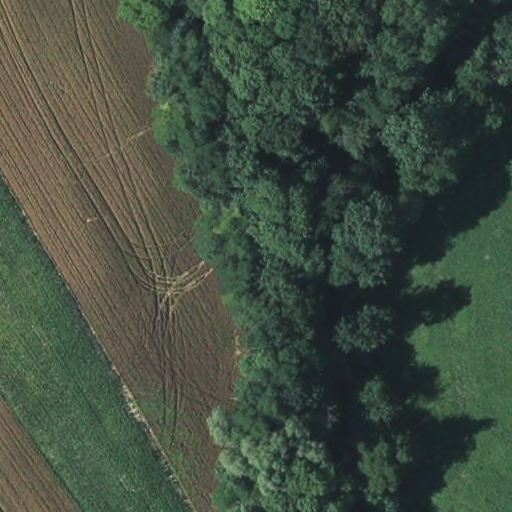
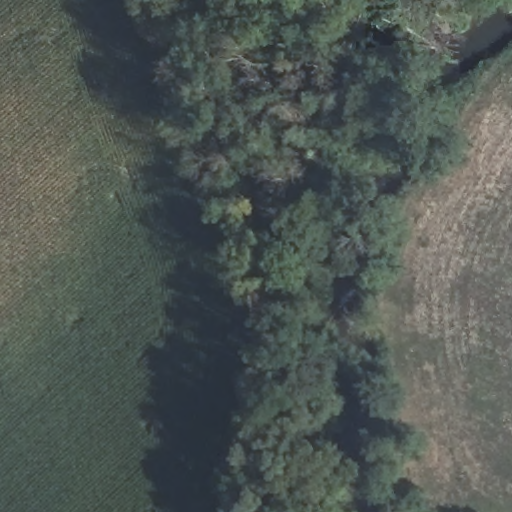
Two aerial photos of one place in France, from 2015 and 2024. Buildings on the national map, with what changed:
[]

